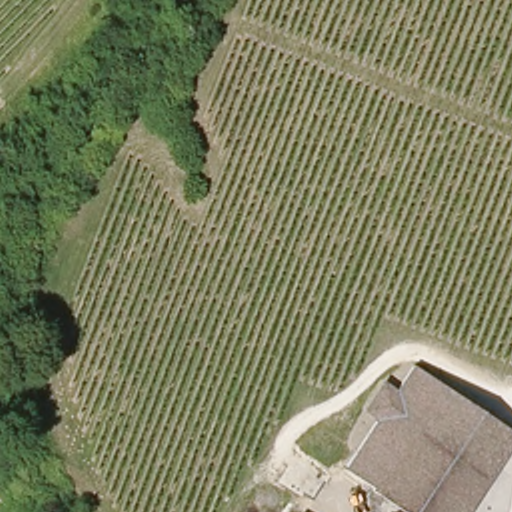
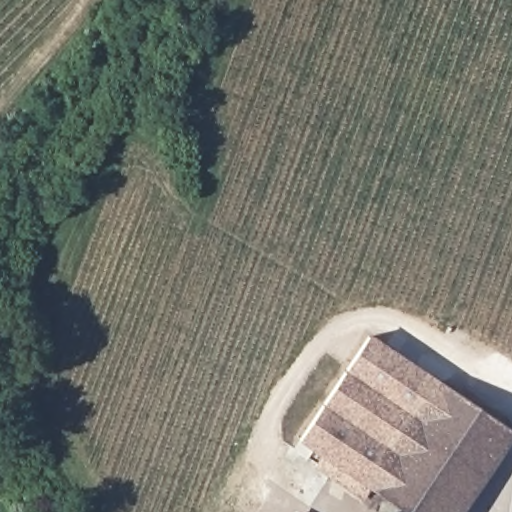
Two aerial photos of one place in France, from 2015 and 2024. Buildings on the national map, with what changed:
new [(402,390),(398,390),(395,391),(393,393),(390,395),(384,401),(382,407),(381,415),(355,445),(340,462),(371,487),(363,501),(312,466),(319,455),(297,440),(370,334),(421,368),(402,390)]
unchanged [(381,415),(382,407),(384,401),(390,395),(393,393),(395,391),(398,390),(402,390),(425,365),(512,441),(512,448),(506,455),(441,400),(436,405),(400,443),(397,441),(381,430),(362,451),(355,445),(381,415)]
unchanged [(459,512),(400,512),(340,462),(355,445),(362,451),(381,430),(397,441),(400,443),(436,405),(441,400),(506,455),(459,512)]
unchanged [(299,510),(303,512),(298,512),(299,510)]

